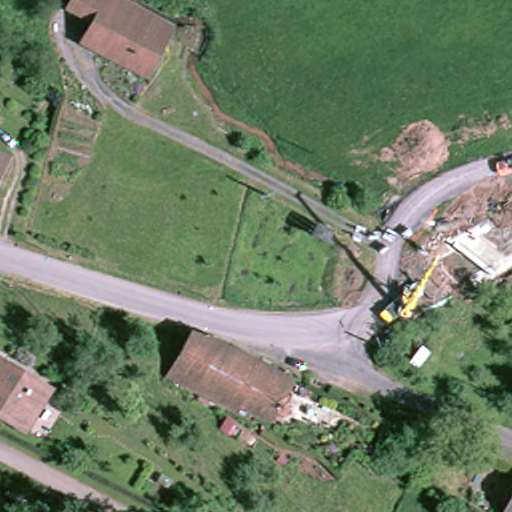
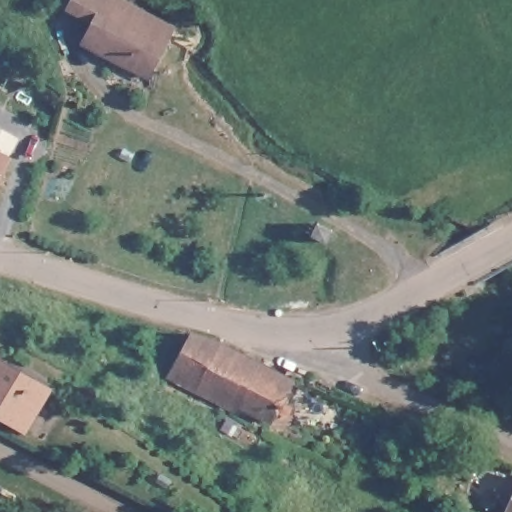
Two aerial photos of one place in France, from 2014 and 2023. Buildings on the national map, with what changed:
unchanged [(92,22),(71,13),(76,0),(130,0),(178,25),(170,41),(164,53),(164,54),(150,80),(82,44),(92,22)]
unchanged [(12,154),(0,180),(0,149),(12,154)]
unchanged [(224,343),(302,371),(293,397),(302,400),(300,409),(290,406),(286,416),(253,404),(250,413),(179,386),(195,341),(222,347),(224,343)]
unchanged [(48,392),(27,433),(0,418),(0,367),(48,392)]
unchanged [(512,508),(512,512),(510,512),(512,508)]

